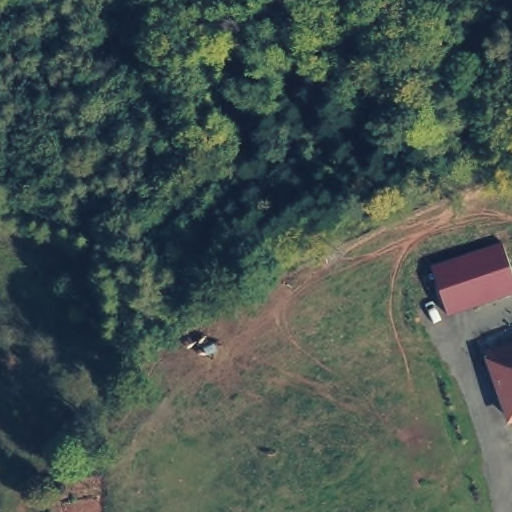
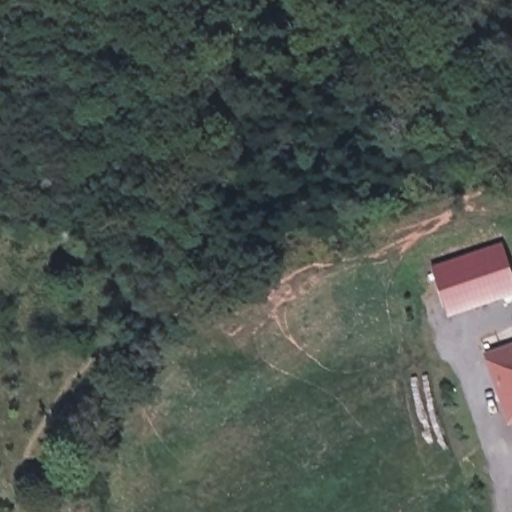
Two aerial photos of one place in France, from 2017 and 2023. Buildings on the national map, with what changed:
unchanged [(428,266),(501,243),(512,276),(512,295),(447,315),(428,266)]
unchanged [(505,426),(481,353),(512,343),(512,424),(505,426)]

